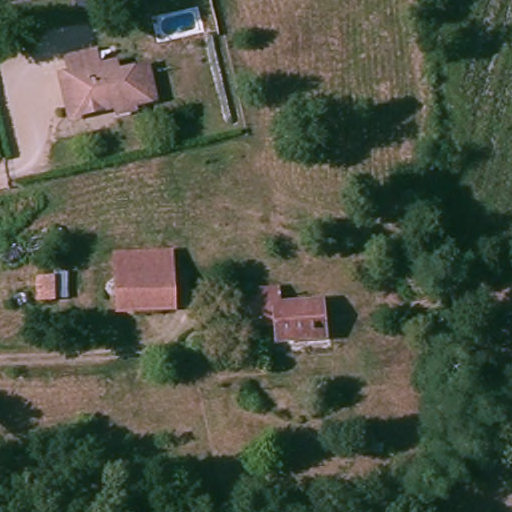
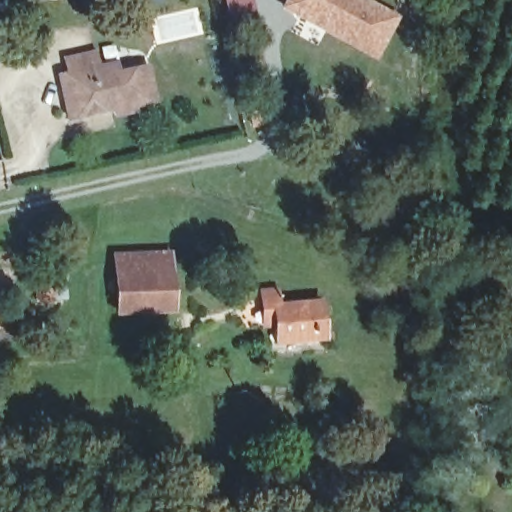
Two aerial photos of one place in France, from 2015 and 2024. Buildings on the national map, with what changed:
new [(224,0),(253,0),(256,17),(229,23),(224,0)]
new [(279,9),(284,0),(366,0),(400,18),(375,62),(279,9)]
unchanged [(55,103),(49,72),(63,69),(61,57),(78,54),(94,51),(95,64),(115,60),(118,73),(147,67),(157,111),(110,121),(108,113),(60,122),(55,103)]
unchanged [(110,255),(161,252),(162,272),(111,275),(110,255)]
unchanged [(32,274),(65,272),(66,309),(34,311),(32,274)]
unchanged [(162,272),(165,311),(115,314),(111,275),(162,272)]
unchanged [(278,321),(262,322),(260,288),(277,287),(278,300),(323,296),(326,333),(280,337),(278,321)]

